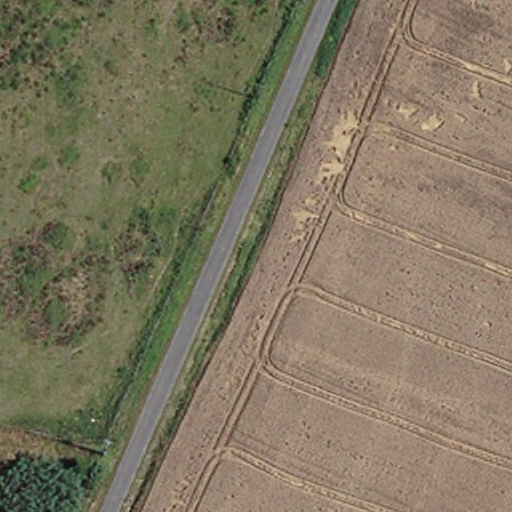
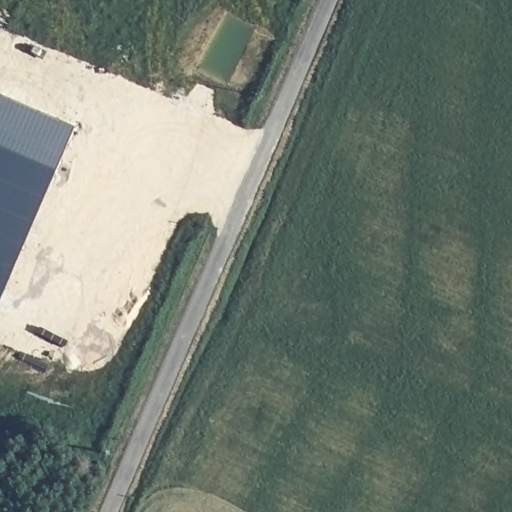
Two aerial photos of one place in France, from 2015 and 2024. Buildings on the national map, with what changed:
new [(0,297),(0,94),(74,126),(0,297)]

